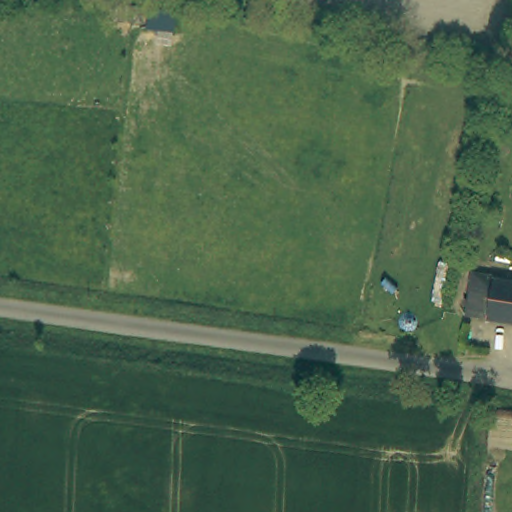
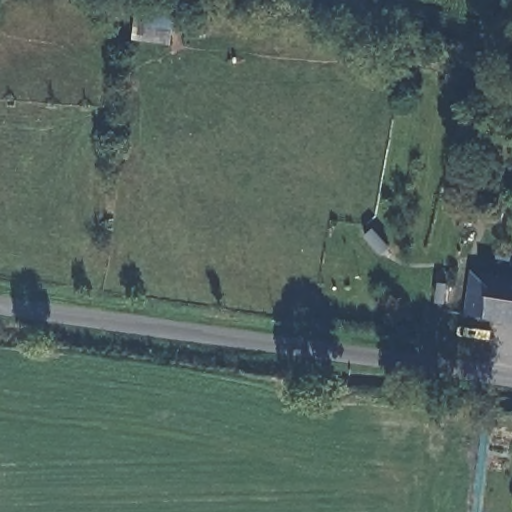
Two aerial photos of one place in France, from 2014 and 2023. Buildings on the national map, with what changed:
unchanged [(471,316),(479,273),(500,276),(499,280),(512,282),(512,323),(471,316)]

